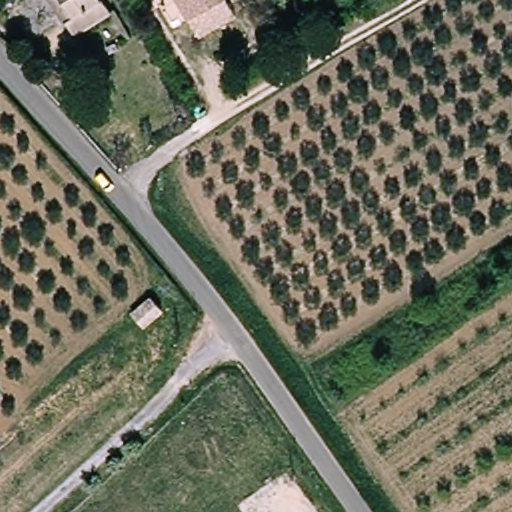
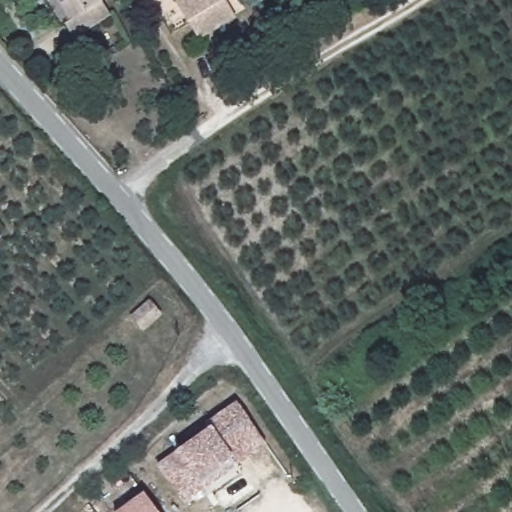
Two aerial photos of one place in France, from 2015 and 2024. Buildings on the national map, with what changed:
unchanged [(108,16),(71,38),(61,24),(46,0),(98,0),(108,16)]
unchanged [(233,20),(193,40),(183,25),(166,33),(148,0),(223,0),(233,20)]
unchanged [(157,317),(136,333),(124,318),(145,300),(157,317)]
new [(203,433),(200,428),(230,406),(260,447),(231,468),(237,475),(203,500),(198,493),(178,506),(152,470),(203,433)]
new [(150,512),(122,512),(141,499),(150,512)]

